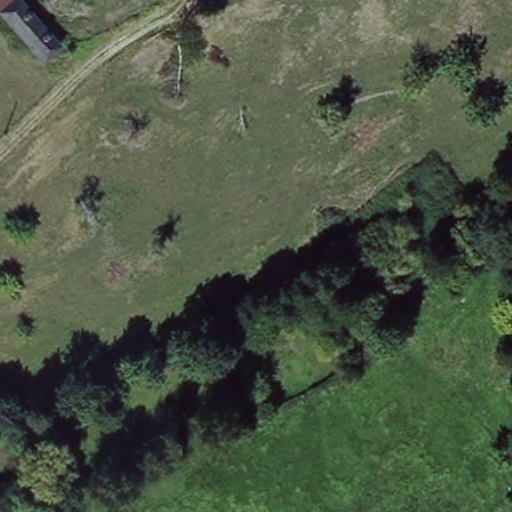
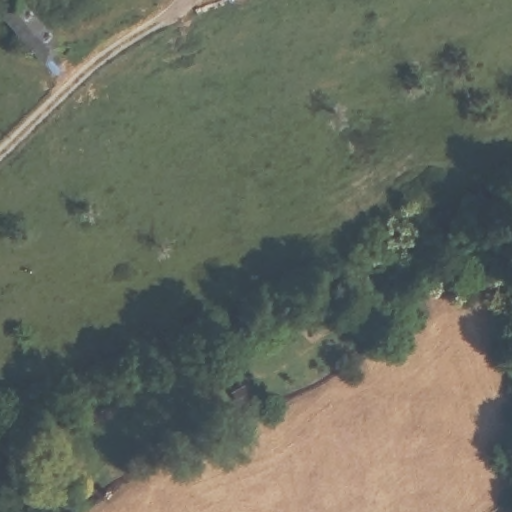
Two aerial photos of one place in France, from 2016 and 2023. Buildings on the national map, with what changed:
unchanged [(24,0),(63,46),(46,60),(0,7),(0,0),(24,0)]

